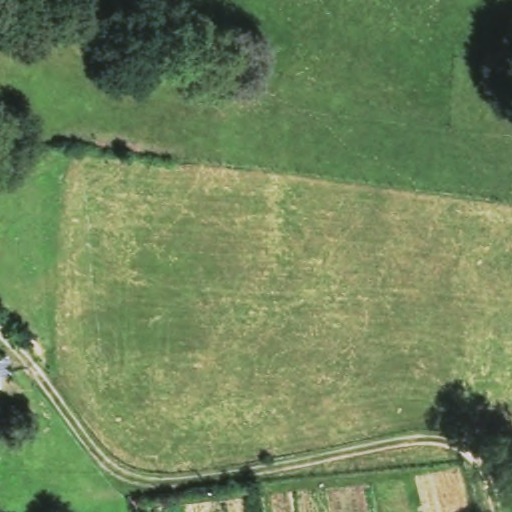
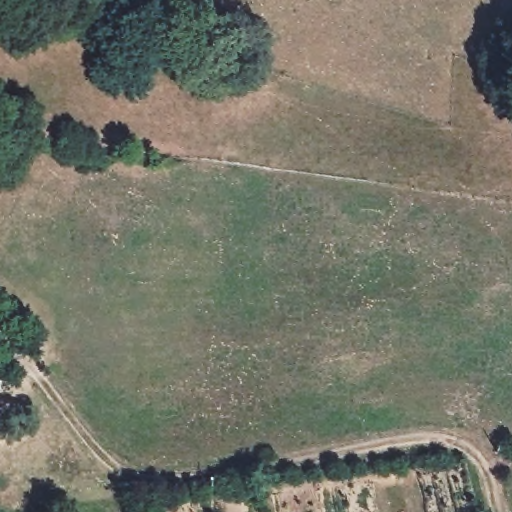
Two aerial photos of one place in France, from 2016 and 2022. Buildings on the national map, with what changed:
unchanged [(9,373),(0,376),(0,353),(5,352),(9,373)]

